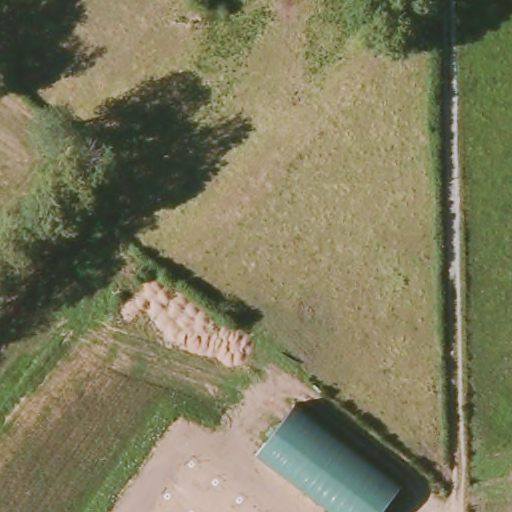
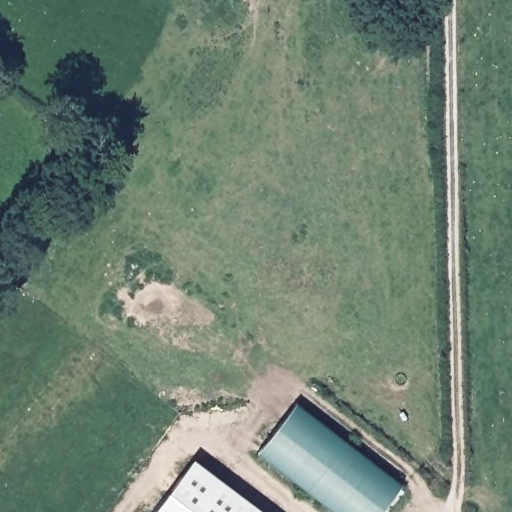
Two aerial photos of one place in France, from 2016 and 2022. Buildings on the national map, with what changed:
unchanged [(402,485),(382,512),(330,512),(255,455),(296,402),(402,485)]
new [(191,460),(260,512),(152,512),(191,460)]

